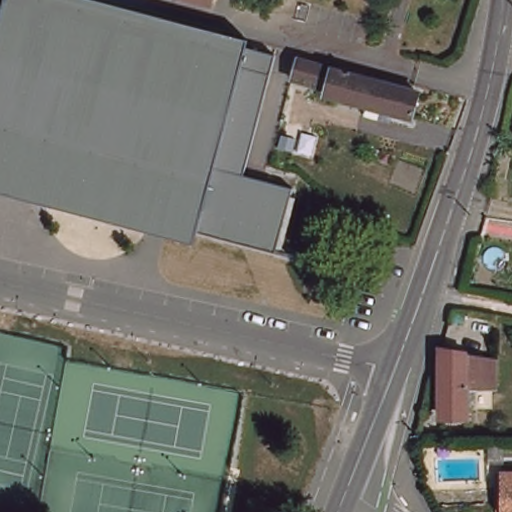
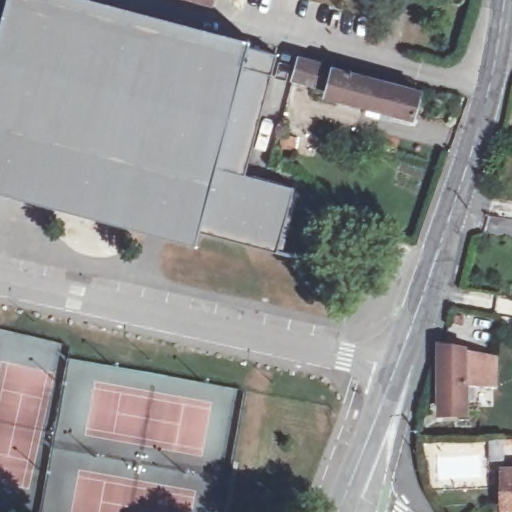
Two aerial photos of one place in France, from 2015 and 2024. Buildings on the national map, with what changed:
unchanged [(283,254),(200,229),(196,243),(0,190),(0,24),(6,0),(97,0),(250,40),(248,45),(277,55),(246,175),(295,188),(293,197),(298,197),(283,254)]
unchanged [(351,97),(301,84),(303,77),(292,75),(297,57),(338,69),(336,74),(370,82),(371,80),(376,81),(376,84),(423,96),(416,124),(348,105),(351,97)]
unchanged [(461,409),(442,410),(432,410),(433,357),(433,348),(435,349),(484,357),(483,381),(481,407),(461,409)]
unchanged [(503,468),(512,468),(512,505),(503,505),(503,468)]

